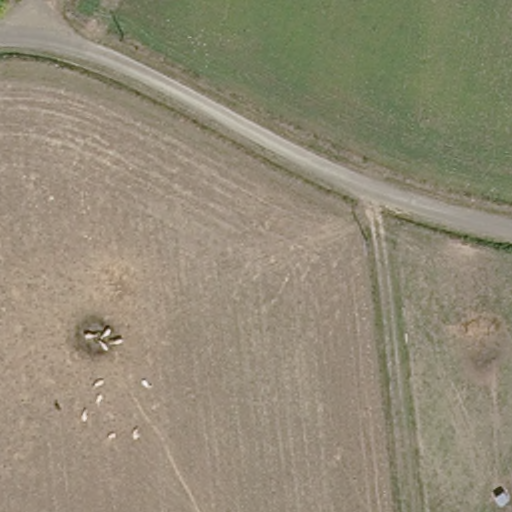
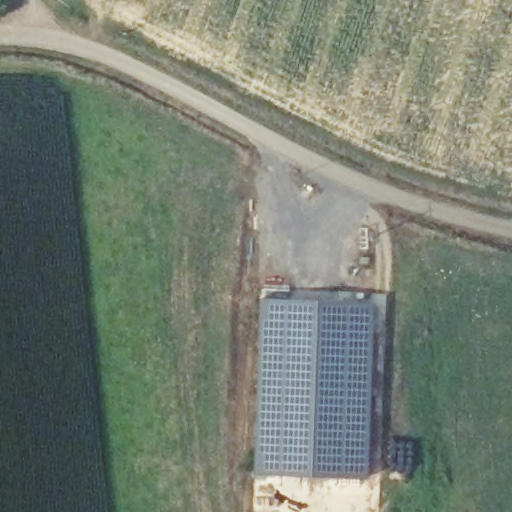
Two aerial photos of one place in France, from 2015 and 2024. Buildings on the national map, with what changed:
new [(251,473),(258,299),(370,303),(367,480),(251,473)]

